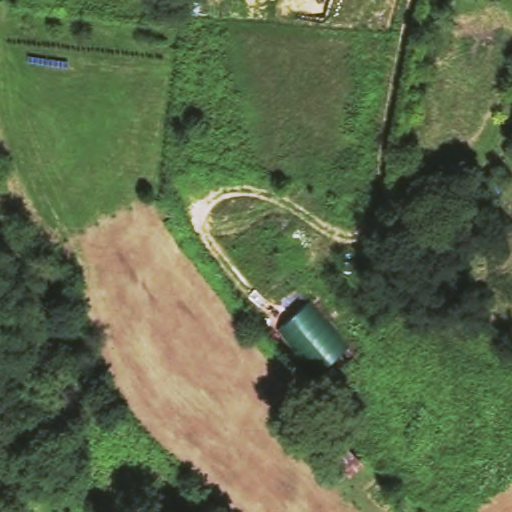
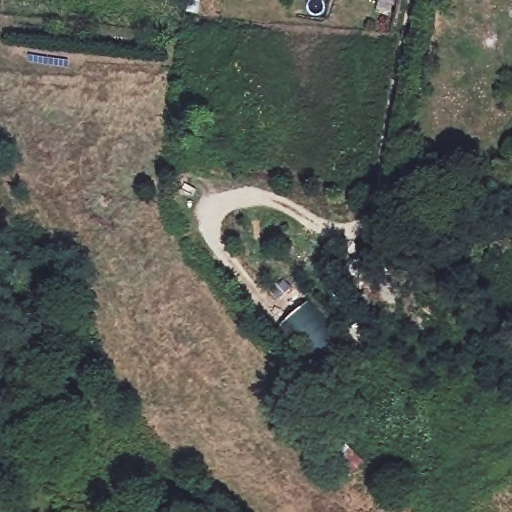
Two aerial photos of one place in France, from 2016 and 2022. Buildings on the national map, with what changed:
unchanged [(321,368),(281,323),(308,302),(345,347),(321,368)]
unchanged [(360,460),(339,483),(307,455),(331,436),(360,460)]

